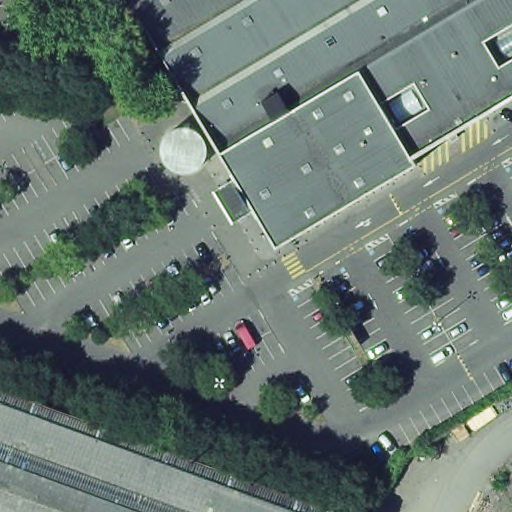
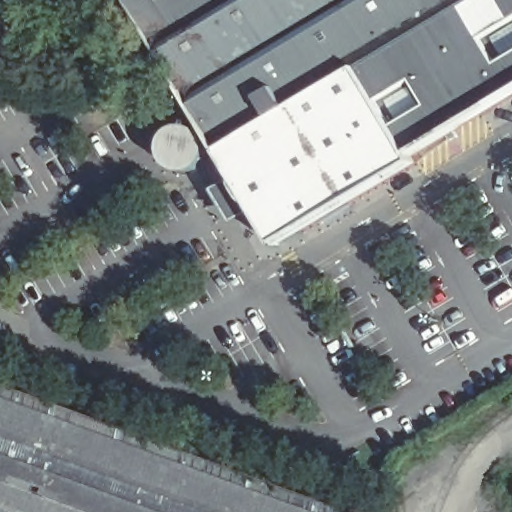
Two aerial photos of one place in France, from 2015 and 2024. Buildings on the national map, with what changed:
unchanged [(213,150),(212,148),(212,147),(212,145),(211,144),(209,140),(215,137),(200,113),(189,95),(190,95),(140,10),(140,9),(140,0),(512,0),(512,106),(419,161),(423,168),(308,236),(283,250),(283,251),(272,234),(260,215),(225,156),(222,149),(213,154),(213,152),(213,150)]
unchanged [(306,503),(332,512),(0,512),(0,390),(252,482),(306,503)]

